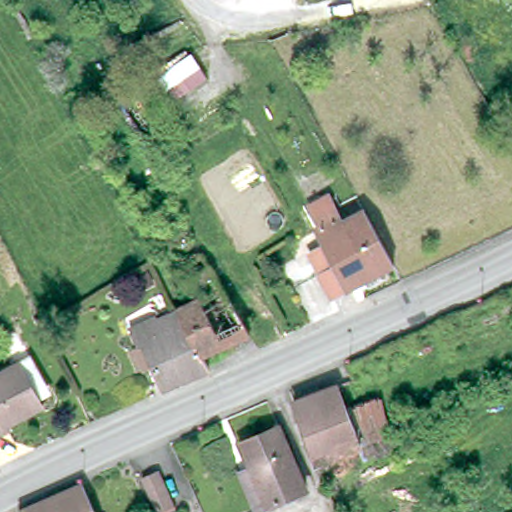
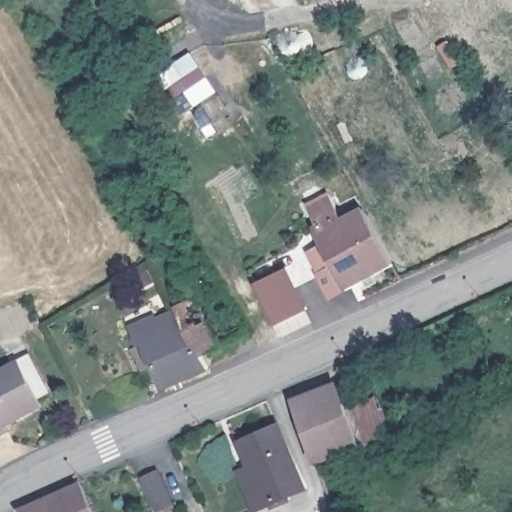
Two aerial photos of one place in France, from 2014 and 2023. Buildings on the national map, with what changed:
unchanged [(360,283),(327,301),(315,278),(316,277),(305,256),(320,247),(317,242),(320,240),(315,230),(317,229),(308,214),(325,205),(336,227),(358,212),(370,233),(389,267),(368,278),(371,285),(362,290),(360,283)]
unchanged [(195,283),(192,286),(180,266),(202,251),(249,331),(202,355),(178,310),(176,307),(201,293),(195,283)]
new [(255,286),(286,270),(305,306),(274,322),(255,286)]
unchanged [(144,287),(138,277),(148,271),(155,282),(144,287)]
unchanged [(132,347),(138,344),(131,330),(155,317),(157,320),(178,310),(202,355),(208,367),(164,385),(155,366),(145,371),(132,347)]
unchanged [(0,435),(0,373),(25,360),(40,388),(44,397),(38,401),(32,403),(37,410),(0,430),(3,433),(0,435)]
unchanged [(296,400),(337,382),(347,408),(362,446),(361,446),(317,463),(293,401),(296,400)]
unchanged [(376,397),(391,434),(362,446),(347,408),(376,397)]
unchanged [(240,470),(251,466),(240,441),(278,424),(306,488),(269,505),(257,510),(240,470)]
unchanged [(165,512),(160,512),(159,510),(144,477),(161,469),(176,502),(178,507),(165,512)]
unchanged [(35,503),(82,486),(94,512),(22,512),(21,510),(35,503)]

